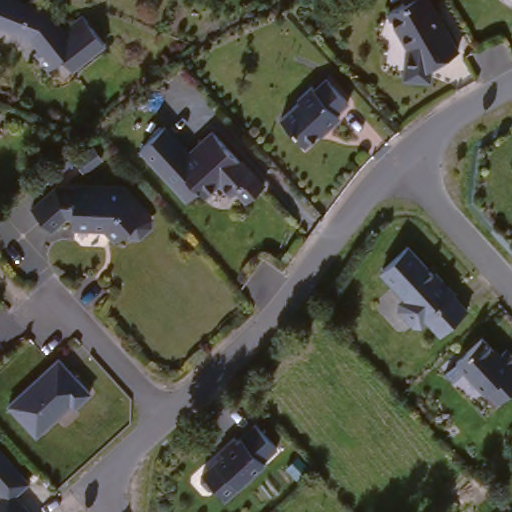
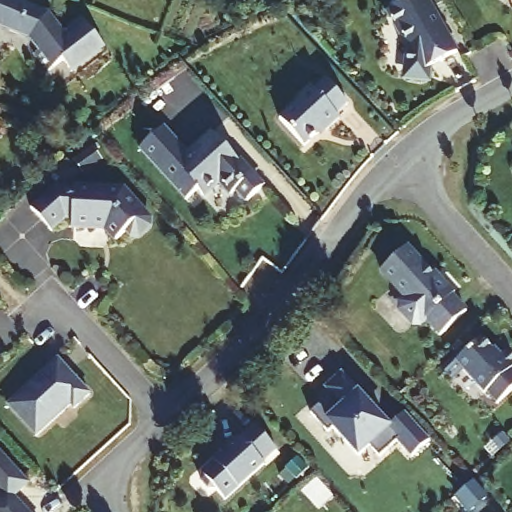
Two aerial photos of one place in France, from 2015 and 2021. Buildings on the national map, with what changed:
unchanged [(62,81),(23,39),(0,30),(0,0),(2,0),(56,22),(63,44),(85,29),(102,54),(62,81)]
unchanged [(440,65),(438,63),(429,68),(428,79),(421,83),(409,81),(405,74),(406,51),(384,17),(401,7),(397,0),(421,0),(456,55),(440,65)]
unchanged [(298,112),(296,110),(310,98),(313,101),(325,91),(346,114),(335,125),(338,129),(325,141),(323,139),(303,157),(279,130),(298,112)]
unchanged [(261,193),(246,206),(236,194),(230,199),(217,185),(201,200),(196,195),(184,205),(138,153),(162,131),(186,159),(211,136),(261,193)]
unchanged [(149,232),(143,238),(135,245),(123,239),(111,246),(103,236),(68,234),(69,228),(62,226),(47,237),(27,216),(54,195),(120,199),(149,232)]
unchanged [(437,282),(438,281),(451,295),(449,296),(463,313),(437,336),(423,320),(417,324),(410,324),(398,310),(398,303),(403,298),(379,270),(406,247),(437,282)]
unchanged [(496,355),(504,348),(512,357),(512,365),(510,366),(512,369),(512,387),(494,402),(484,390),(482,391),(453,359),(479,336),(496,355)]
unchanged [(56,357),(89,393),(71,410),(68,406),(33,438),(3,405),(56,357)]
new [(357,390),(389,422),(403,410),(431,441),(412,458),(397,441),(379,455),(371,445),(358,457),(331,428),(327,432),(309,414),(330,394),(323,386),(341,371),(357,390)]
unchanged [(276,452),(261,464),(263,466),(224,502),(214,492),(208,492),(200,484),(201,477),(222,457),(218,453),(233,440),(236,444),(253,428),(276,452)]
unchanged [(28,486),(16,498),(27,512),(0,512),(0,501),(3,497),(0,494),(0,454),(28,486)]

